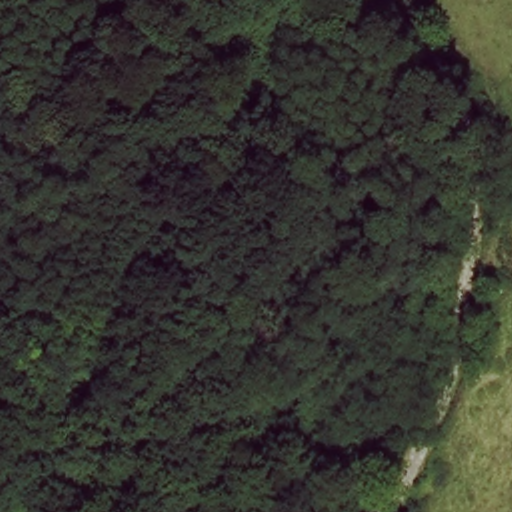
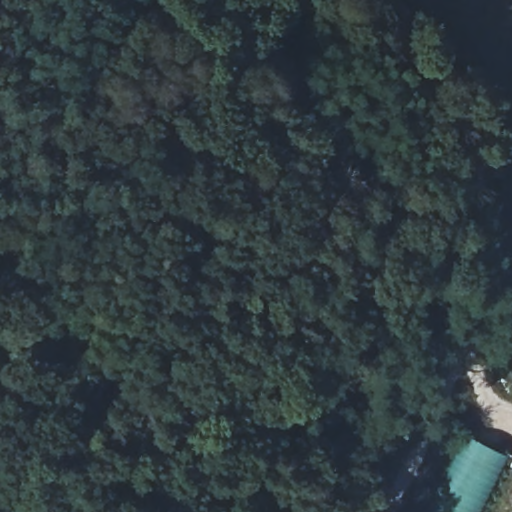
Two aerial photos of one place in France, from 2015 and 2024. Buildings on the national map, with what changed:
new [(471,503),(466,512),(433,512),(471,436),(507,454),(480,507),(471,503)]

